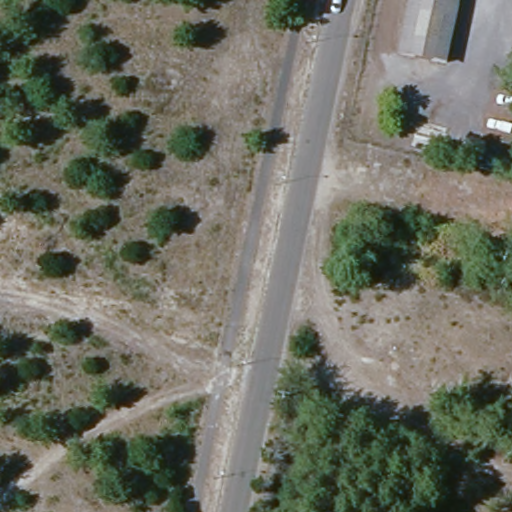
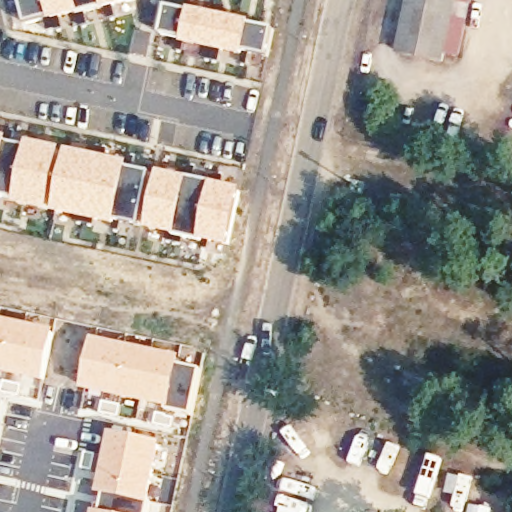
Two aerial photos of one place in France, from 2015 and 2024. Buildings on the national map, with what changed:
new [(95,4),(51,16),(50,14),(24,21),(18,0),(119,0),(96,6),(95,4)]
unchanged [(402,59),(412,0),(458,0),(447,66),(402,59)]
new [(165,4),(272,26),(267,54),(242,49),(241,51),(184,40),(184,37),(160,31),(165,4)]
new [(4,135),(3,138),(27,143),(27,140),(57,146),(44,205),(15,198),(16,196),(0,193),(0,134),(4,135)]
new [(66,148),(125,161),(124,163),(148,168),(137,221),(112,216),(112,219),(54,206),(66,148)]
new [(157,170),(182,175),(182,173),(212,179),(212,181),(237,187),(226,240),(201,235),(200,237),(171,231),(171,229),(147,223),(157,170)]
new [(57,331),(44,385),(0,375),(0,319),(57,331)]
new [(94,339),(182,357),(180,366),(170,411),(82,390),(94,339)]
new [(180,366),(201,370),(191,416),(170,411),(180,366)]
new [(106,498),(97,496),(111,434),(163,444),(151,506),(149,512),(103,512),(106,498)]

